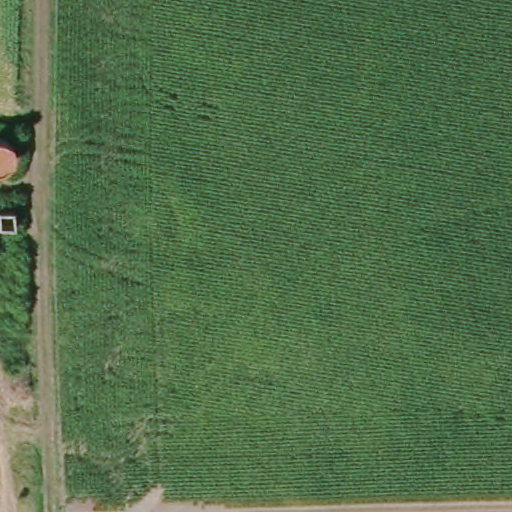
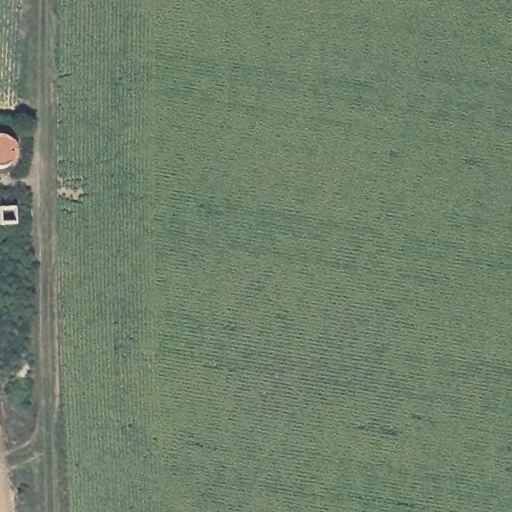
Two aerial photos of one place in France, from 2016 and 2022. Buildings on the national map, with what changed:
unchanged [(4,133),(14,138),(18,148),(18,158),(12,167),(2,172),(0,171),(0,133),(4,133)]
unchanged [(17,225),(0,226),(0,207),(16,207),(17,225)]

